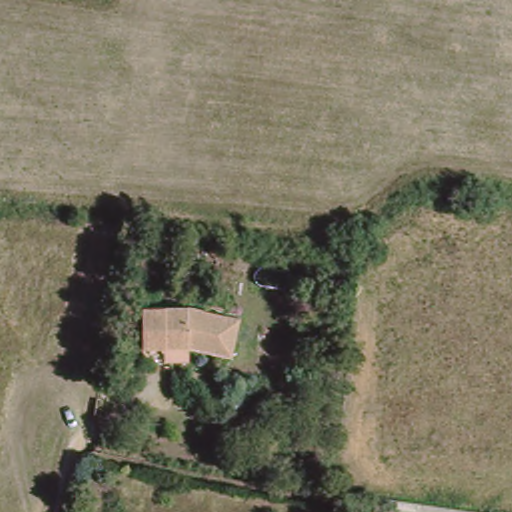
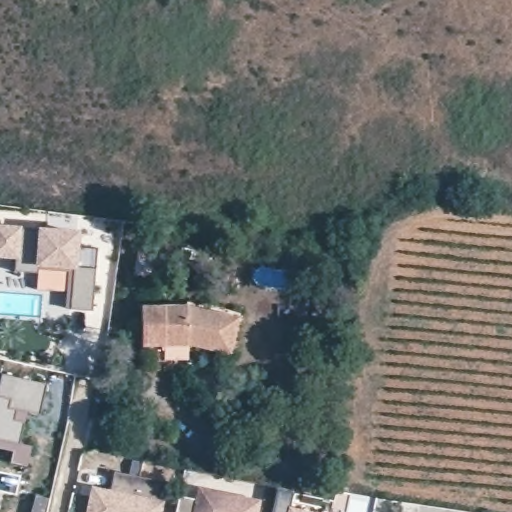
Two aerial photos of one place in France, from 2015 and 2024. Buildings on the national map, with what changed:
new [(75,244),(96,246),(92,309),(69,308),(72,266),(37,263),(37,266),(14,265),(15,250),(0,249),(0,225),(76,230),(75,244)]
unchanged [(166,354),(166,358),(142,358),(143,305),(192,304),(238,318),(230,352),(189,343),(190,352),(166,354)]
new [(7,462),(10,450),(0,448),(0,373),(43,382),(37,414),(23,411),(21,421),(17,443),(29,446),(25,465),(7,462)]
new [(118,492),(122,472),(167,481),(161,512),(93,512),(98,488),(104,489),(118,492)]
new [(198,498),(200,488),(260,500),(257,512),(176,512),(180,495),(198,498)]
new [(290,506),(287,506),(286,512),(273,512),(278,490),(293,492),(290,506)]
new [(313,512),(286,512),(287,506),(313,512)]

